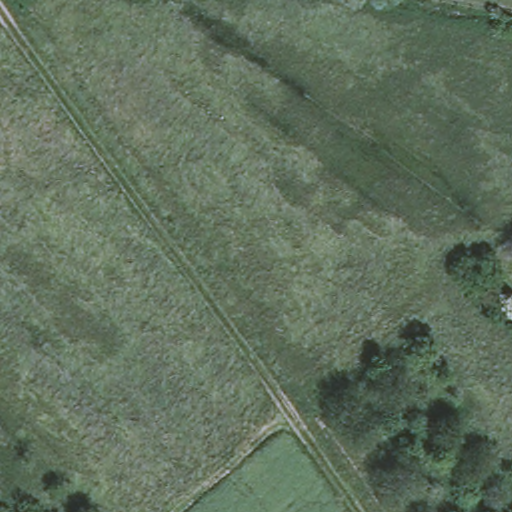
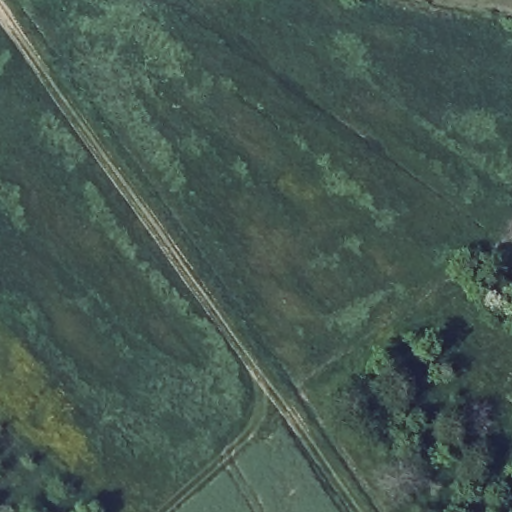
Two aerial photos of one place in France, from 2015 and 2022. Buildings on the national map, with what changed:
[]

